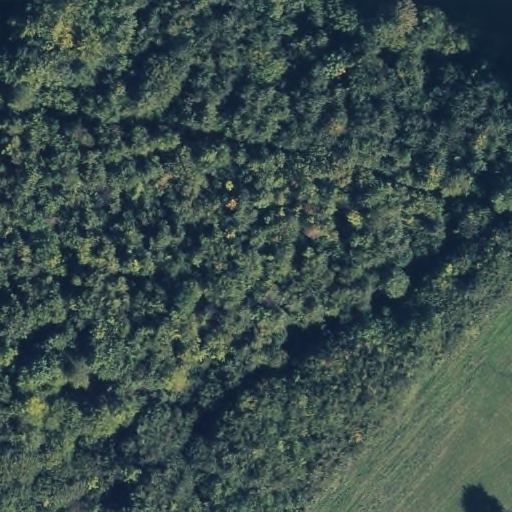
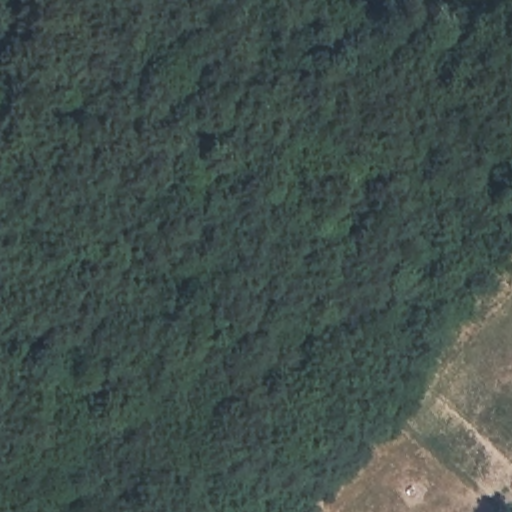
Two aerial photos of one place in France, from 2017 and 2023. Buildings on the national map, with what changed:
[]

